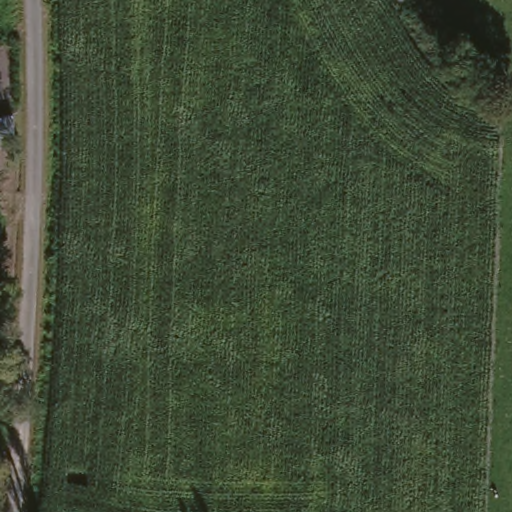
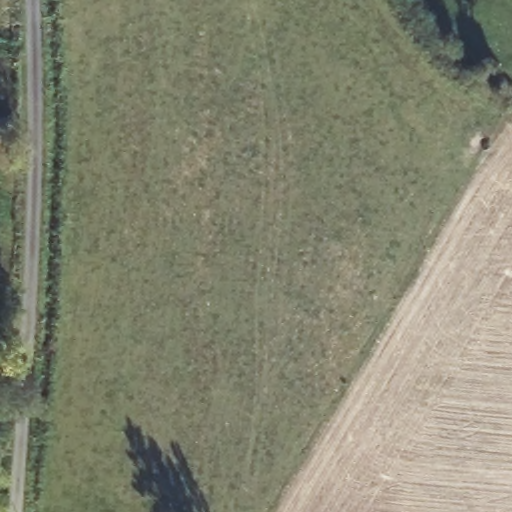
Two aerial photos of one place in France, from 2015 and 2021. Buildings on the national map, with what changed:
unchanged [(0,143),(0,119),(15,117),(18,140),(0,143)]

